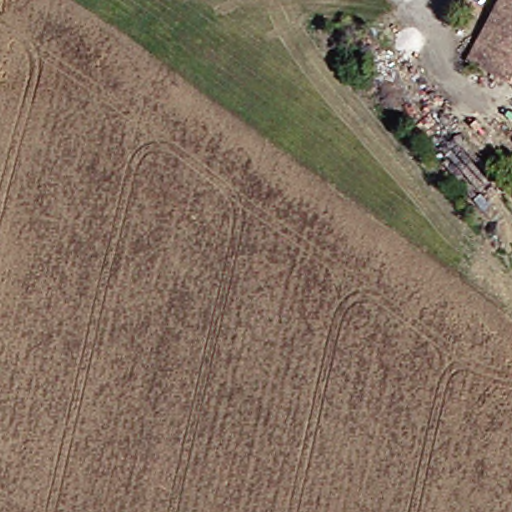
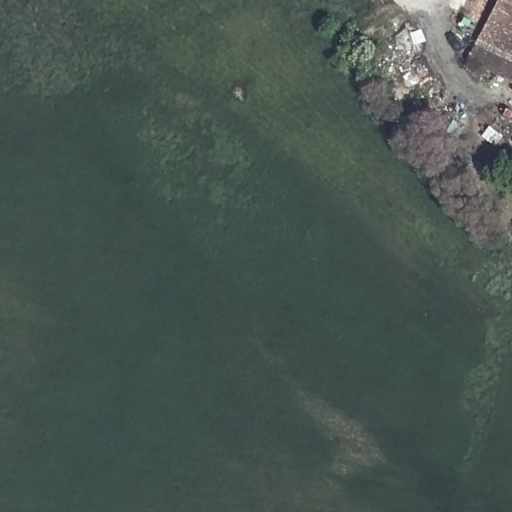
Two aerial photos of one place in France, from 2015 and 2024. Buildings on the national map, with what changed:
unchanged [(512,4),(512,75),(484,62),(512,4)]

